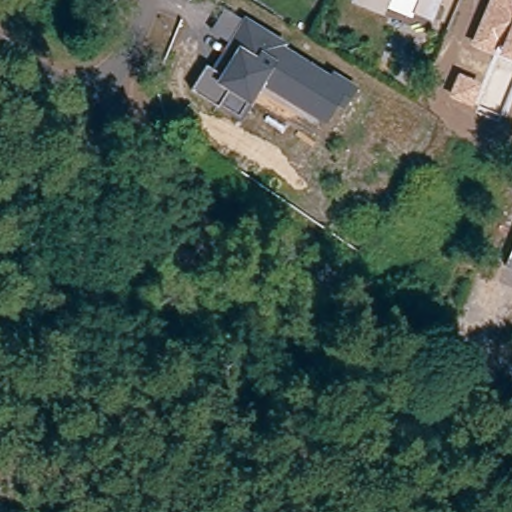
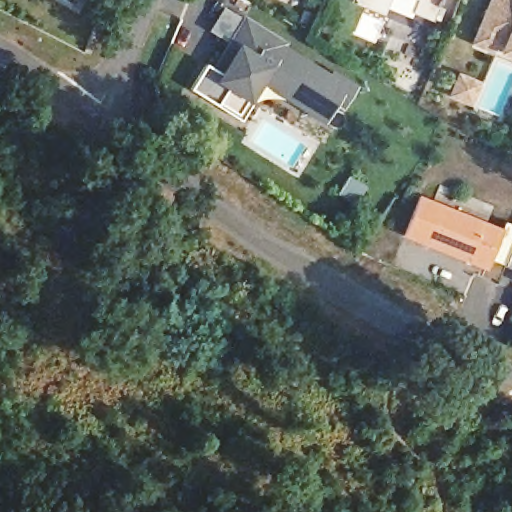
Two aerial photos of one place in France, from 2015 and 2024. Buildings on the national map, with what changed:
new [(75,7),(64,0),(79,0),(75,7)]
unchanged [(385,9),(364,0),(440,0),(432,20),(414,13),(411,20),(385,9)]
unchanged [(512,62),(470,46),(489,0),(512,0),(512,62)]
unchanged [(191,91),(207,66),(215,71),(223,59),(231,64),(240,51),(231,45),(245,22),(283,45),(280,49),(333,81),(335,77),(353,88),(342,105),(336,101),(325,119),(266,83),(242,122),(219,107),(191,91)]
new [(492,260),(488,271),(403,238),(421,196),(502,228),(505,222),(512,224),(512,249),(505,267),(492,260)]
unchanged [(512,249),(512,269),(505,267),(512,249)]

